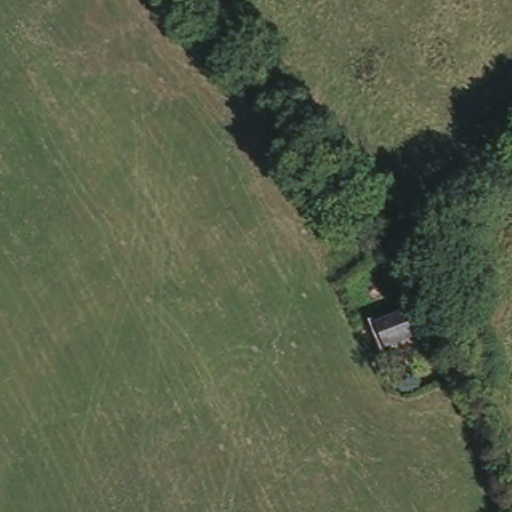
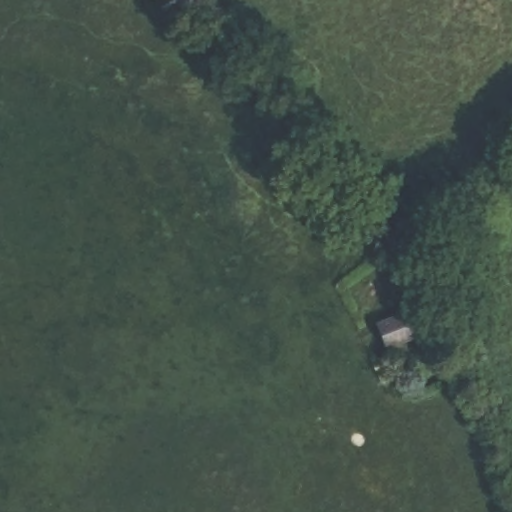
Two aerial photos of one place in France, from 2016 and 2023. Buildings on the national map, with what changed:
unchanged [(423,332),(395,346),(382,323),(411,309),(423,332)]

